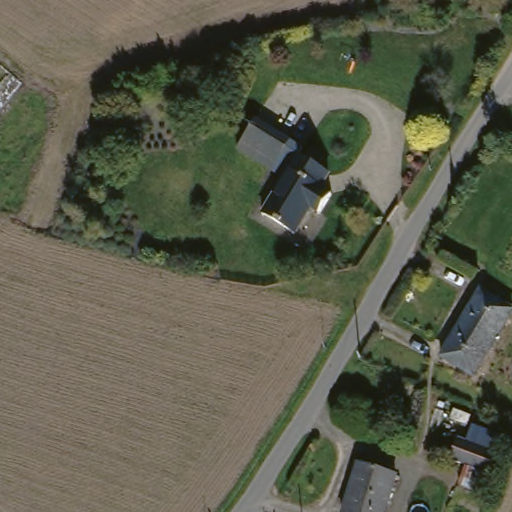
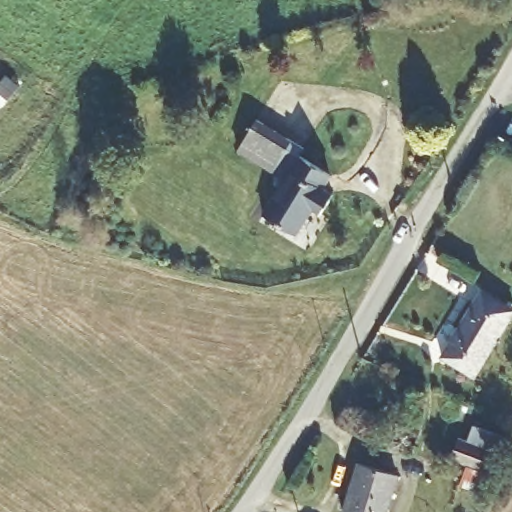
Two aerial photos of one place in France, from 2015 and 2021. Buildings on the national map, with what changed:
unchanged [(273,209),(293,173),(245,148),(261,117),(309,142),(305,150),(337,166),(331,177),(339,181),(328,202),(320,199),(307,226),(273,209)]
unchanged [(512,306),(512,316),(479,372),(444,352),(481,290),(512,306)]
unchanged [(493,461),(460,449),(466,431),(500,442),(493,461)]
unchanged [(363,465),(400,479),(390,512),(355,512),(347,509),(363,465)]

